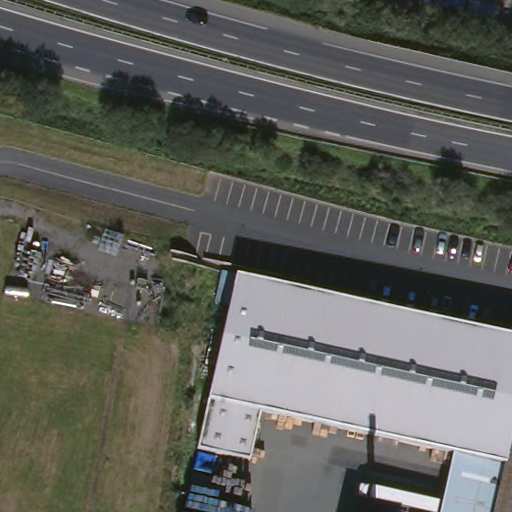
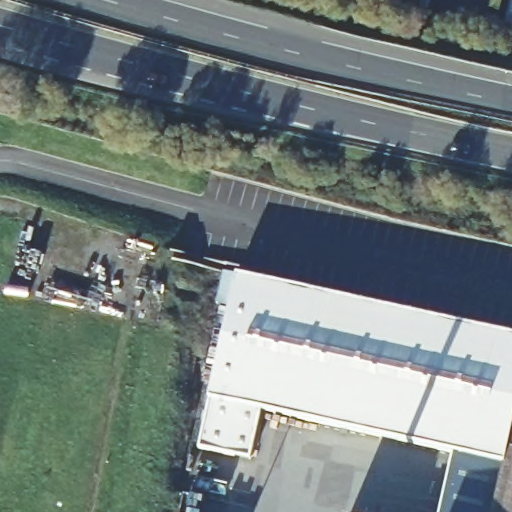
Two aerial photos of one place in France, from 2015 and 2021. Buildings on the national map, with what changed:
unchanged [(440,512),(454,453),(262,410),(251,460),(198,447),(231,304),(218,301),(224,270),(238,273),(512,335),(512,512),(440,512)]

